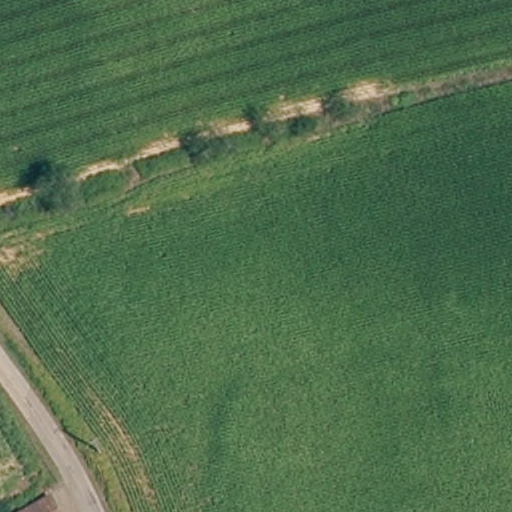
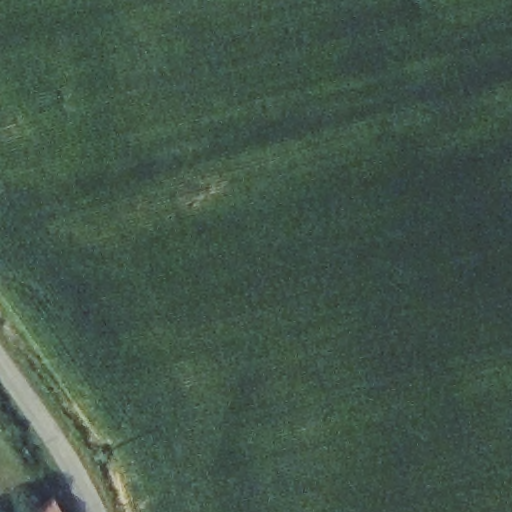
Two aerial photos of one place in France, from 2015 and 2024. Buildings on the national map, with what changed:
unchanged [(67,512),(33,512),(58,496),(67,512)]

